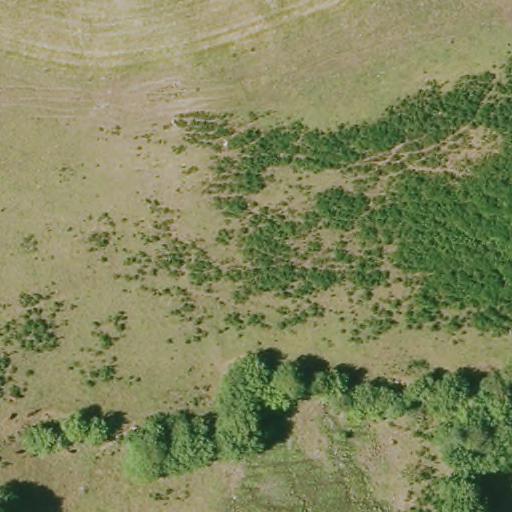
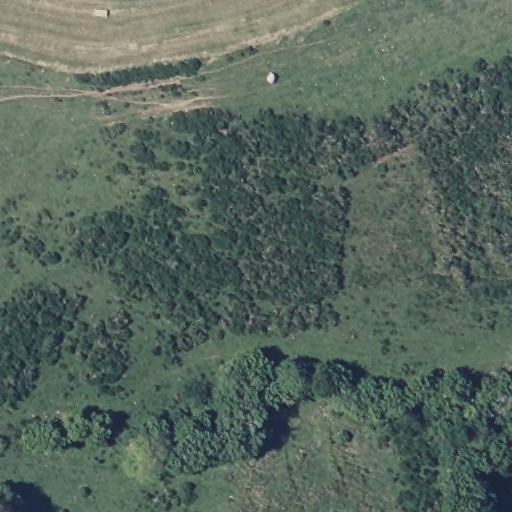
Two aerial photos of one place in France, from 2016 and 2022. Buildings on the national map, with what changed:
[]

